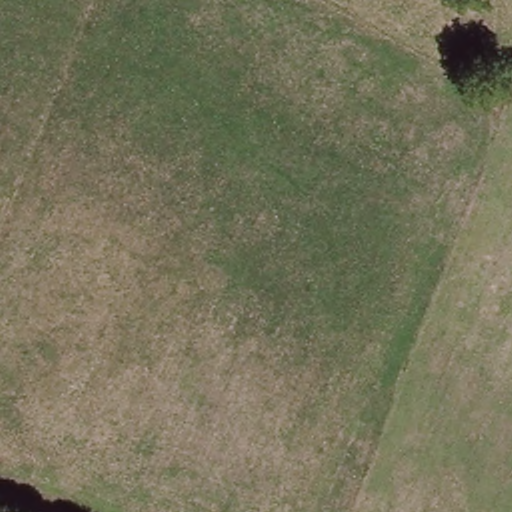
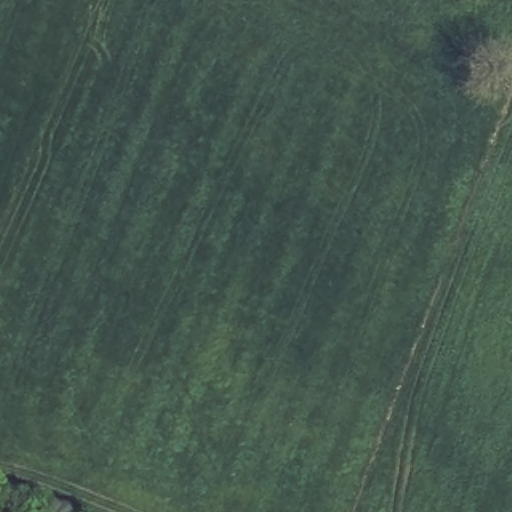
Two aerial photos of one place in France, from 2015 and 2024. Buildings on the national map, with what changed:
[]

